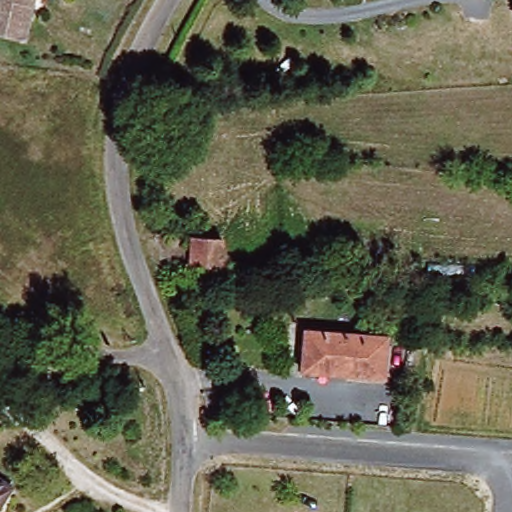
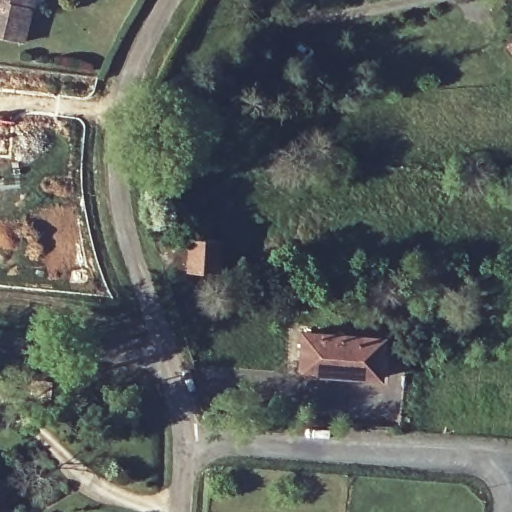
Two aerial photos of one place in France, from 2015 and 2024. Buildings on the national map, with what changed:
unchanged [(19,44),(0,40),(0,0),(26,0),(25,4),(28,5),(25,14),(19,44)]
unchanged [(190,249),(224,255),(221,279),(187,276),(190,249)]
unchanged [(303,329),(388,337),(384,380),(299,372),(303,329)]
unchanged [(0,506),(0,481),(11,489),(0,506)]

